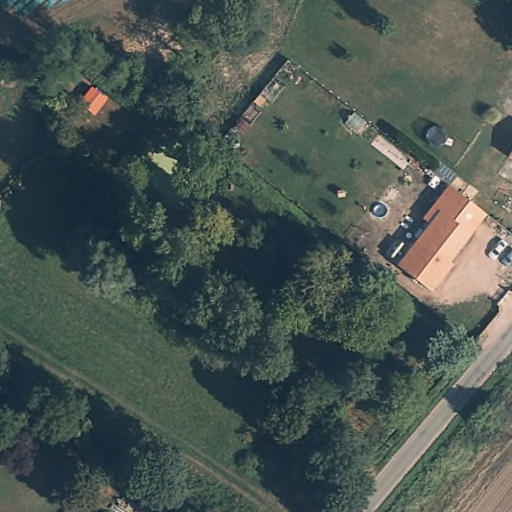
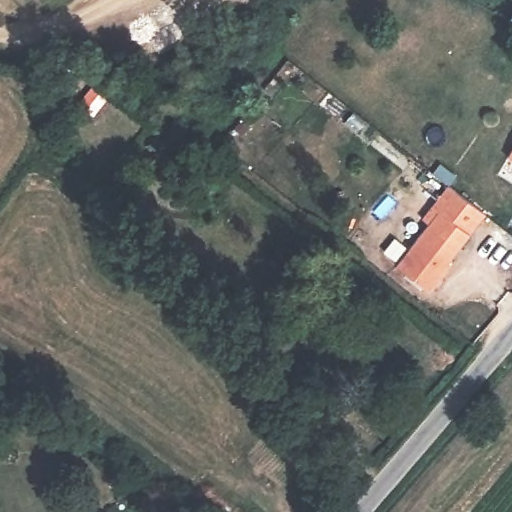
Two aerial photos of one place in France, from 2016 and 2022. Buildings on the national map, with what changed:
unchanged [(512,152),(512,162),(509,160),(512,152)]
unchanged [(450,269),(438,285),(404,258),(440,206),(435,202),(444,190),(478,220),(446,265),(450,269)]

